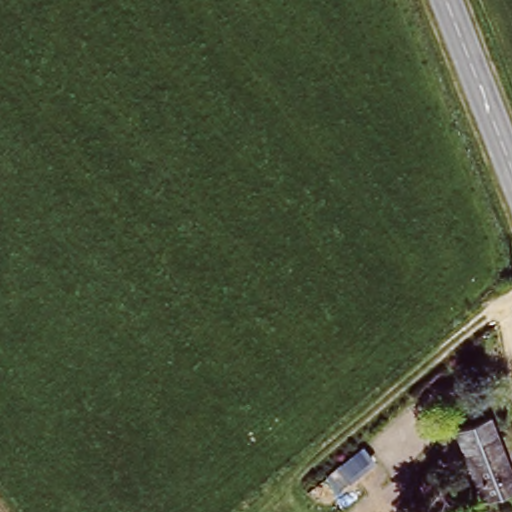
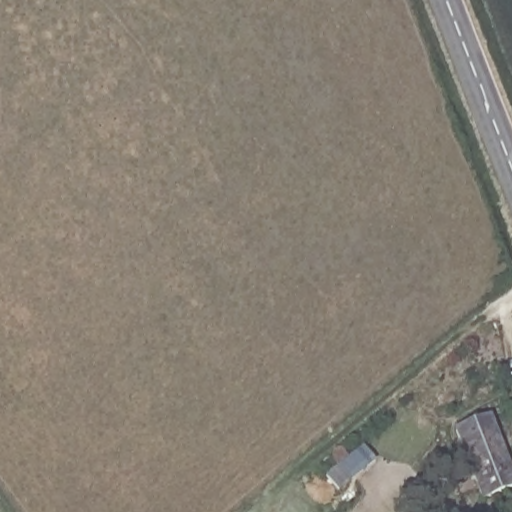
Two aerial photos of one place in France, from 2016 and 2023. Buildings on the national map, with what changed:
unchanged [(512,481),(512,492),(483,506),(453,437),(486,423),(512,481)]

